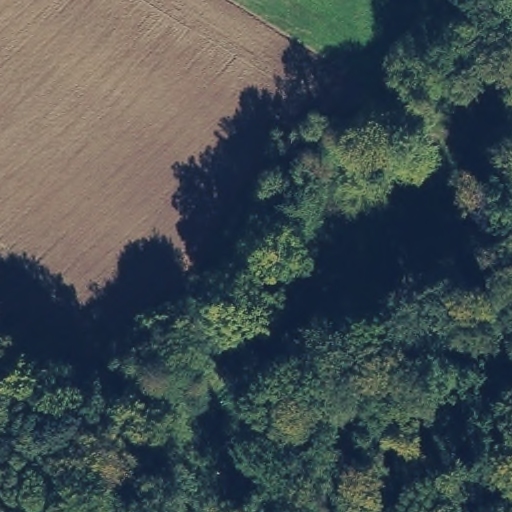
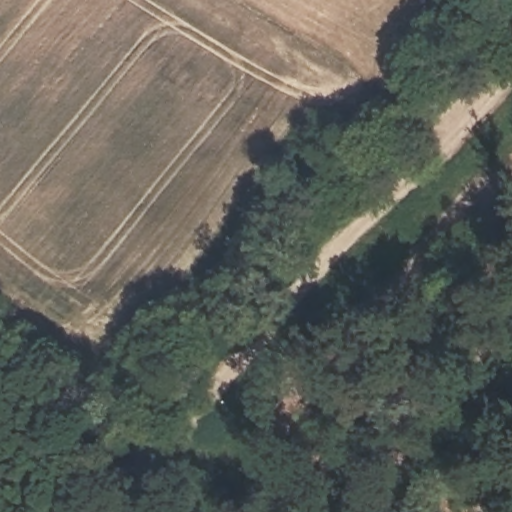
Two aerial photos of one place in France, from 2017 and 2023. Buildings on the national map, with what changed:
[]

